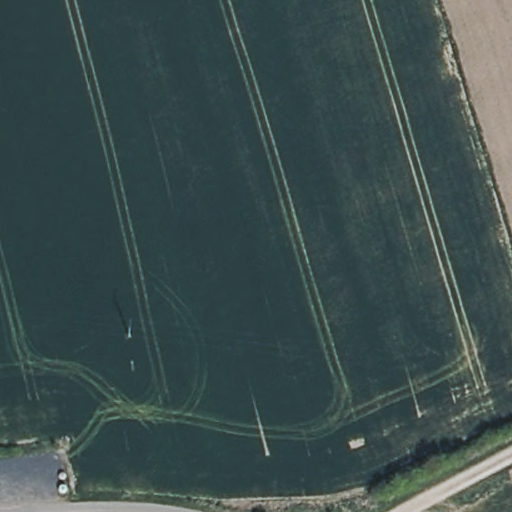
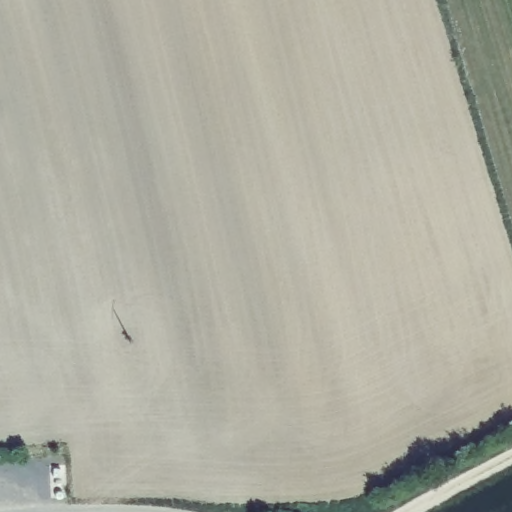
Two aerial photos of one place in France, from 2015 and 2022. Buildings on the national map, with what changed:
[]

